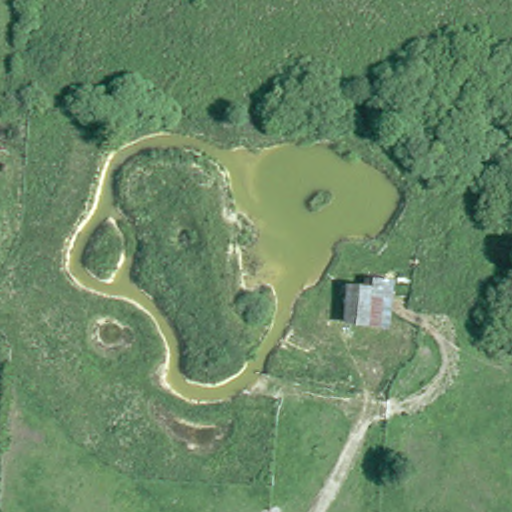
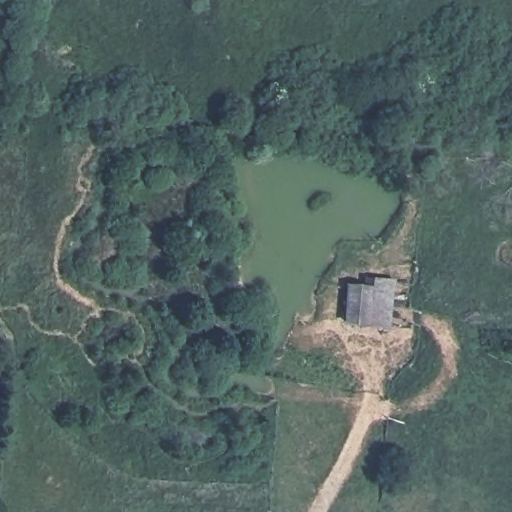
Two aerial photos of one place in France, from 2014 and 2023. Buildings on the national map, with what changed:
unchanged [(390,332),(342,325),(345,290),(365,292),(368,282),(395,287),(390,332)]

